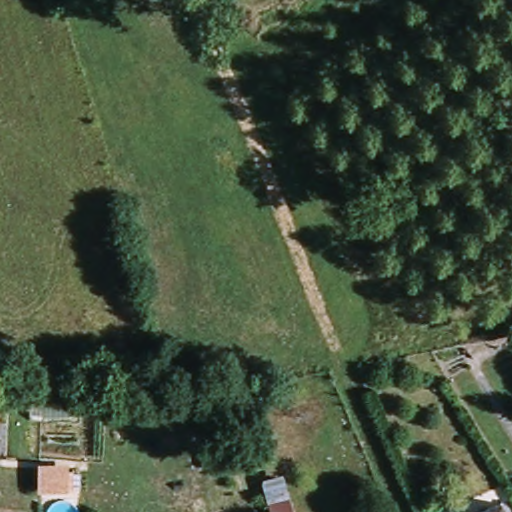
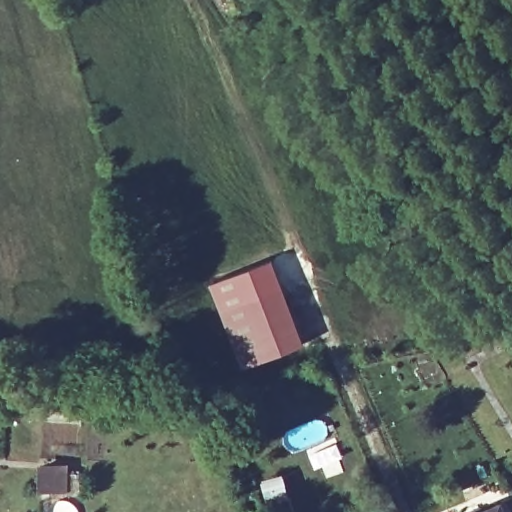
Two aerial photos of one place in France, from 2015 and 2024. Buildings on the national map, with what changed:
new [(272,260),(305,343),(244,367),(213,284),(272,260)]
unchanged [(294,512),(265,512),(258,481),(282,475),(294,512)]
unchanged [(503,509),(504,512),(494,512),(503,509)]

